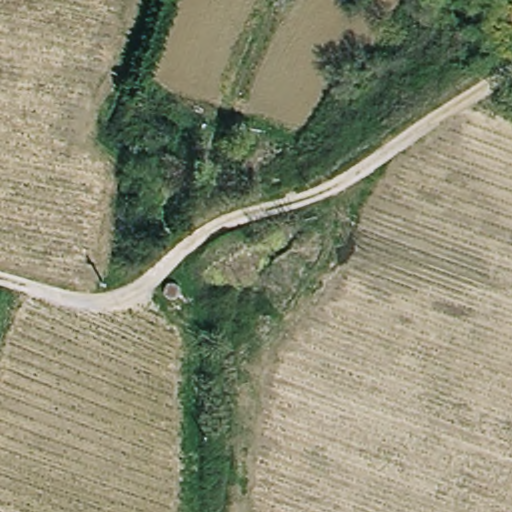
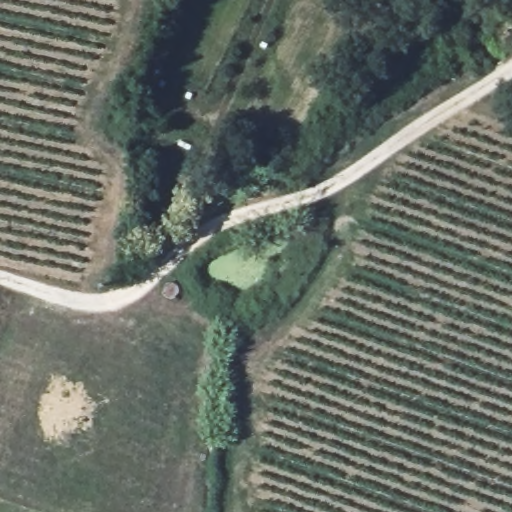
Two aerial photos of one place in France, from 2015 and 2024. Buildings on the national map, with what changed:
[]

